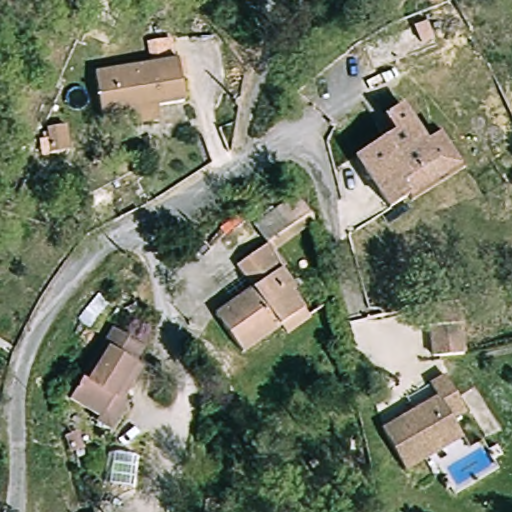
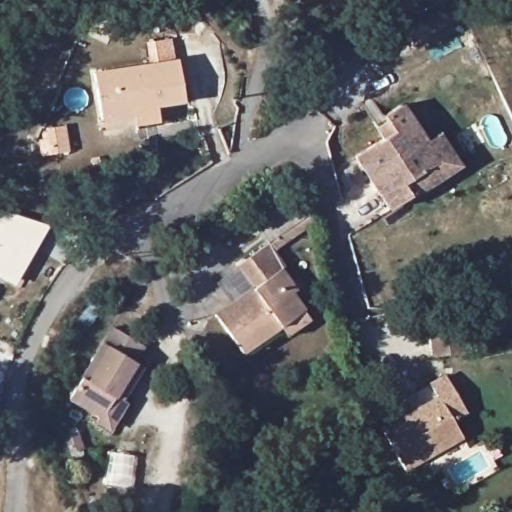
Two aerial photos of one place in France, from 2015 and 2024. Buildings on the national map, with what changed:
unchanged [(137,111),(102,115),(97,69),(181,60),(186,100),(161,104),(162,120),(138,122),(137,111)]
unchanged [(438,165),(401,185),(411,200),(386,206),(355,155),(385,138),(378,123),(386,116),(403,106),(425,144),(438,165)]
unchanged [(70,130),(72,156),(55,157),(53,131),(70,130)]
unchanged [(447,180),(411,200),(401,185),(438,165),(425,144),(441,134),(464,171),(447,180)]
new [(49,225),(13,285),(0,277),(0,208),(49,225)]
unchanged [(300,315),(291,325),(284,318),(252,351),(222,324),(254,287),(235,269),(260,241),(281,260),(276,265),(293,280),(288,286),(302,299),(309,305),(300,315)]
unchanged [(466,348),(435,353),(432,323),(420,323),(417,302),(460,298),(460,310),(465,342),(466,348)]
unchanged [(142,342),(133,358),(139,362),(118,401),(128,406),(114,430),(70,406),(114,327),(142,342)]
unchanged [(407,472),(381,433),(437,397),(429,386),(444,376),(467,411),(452,417),(463,435),(407,472)]

